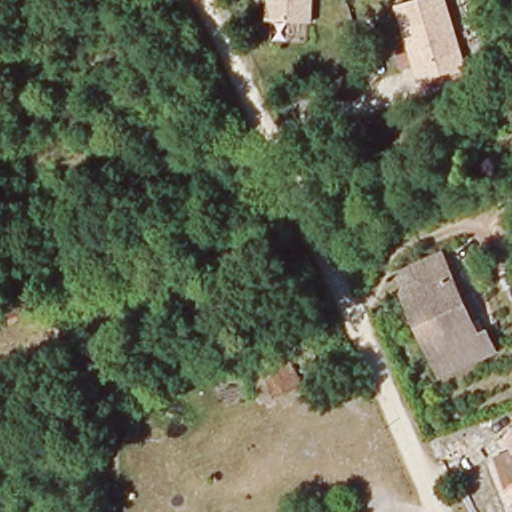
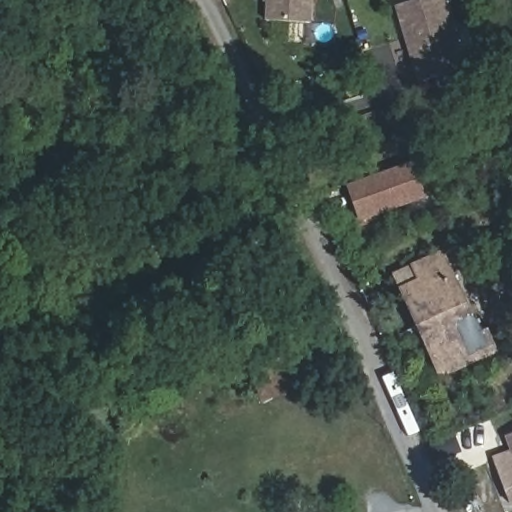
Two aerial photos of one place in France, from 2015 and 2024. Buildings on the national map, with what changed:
unchanged [(264,21),(265,0),(315,0),(314,23),(264,21)]
unchanged [(419,84),(395,4),(409,0),(447,0),(468,68),(419,84)]
new [(360,220),(348,184),(415,162),(427,198),(360,220)]
unchanged [(448,252),(481,330),(491,326),(503,357),(443,380),(396,276),(448,252)]
unchanged [(199,326),(203,336),(194,340),(189,329),(199,326)]
unchanged [(262,402),(246,364),(287,347),(302,385),(262,402)]
unchanged [(512,459),(512,506),(508,507),(494,466),(512,459)]

